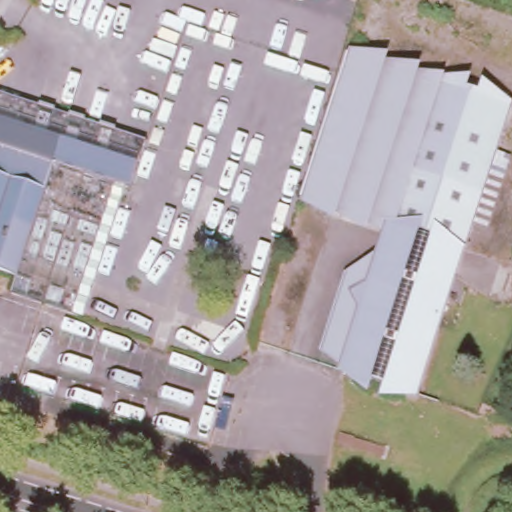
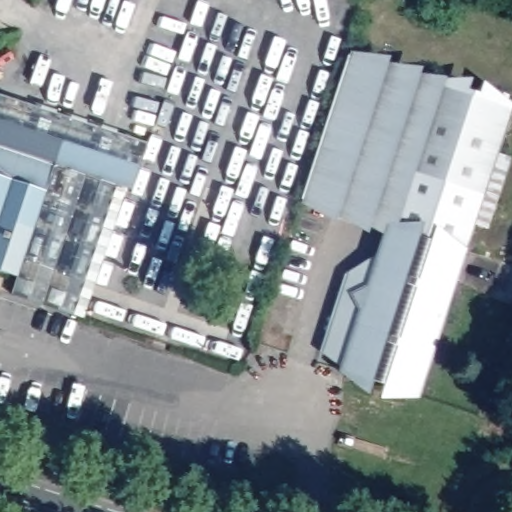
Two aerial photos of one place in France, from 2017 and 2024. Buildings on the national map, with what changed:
unchanged [(433,91),(367,228),(303,208),(348,64),(433,91)]
unchanged [(431,297),(378,280),(365,276),(382,265),(391,236),(367,228),(433,91),(437,93),(509,115),(482,200),(449,302),(431,297)]
unchanged [(150,145),(135,193),(129,191),(58,168),(0,150),(0,98),(73,121),(150,145)]
unchanged [(89,323),(16,301),(22,282),(0,275),(0,150),(58,168),(129,191),(89,323)]
unchanged [(346,379),(351,364),(328,356),(351,285),(365,276),(378,280),(431,297),(403,398),(346,379)]
unchanged [(403,398),(431,297),(449,302),(418,402),(403,398)]
unchanged [(88,461),(82,458),(85,451),(91,453),(88,461)]

